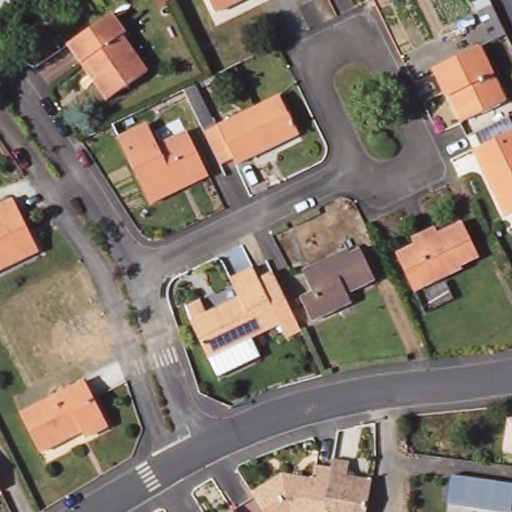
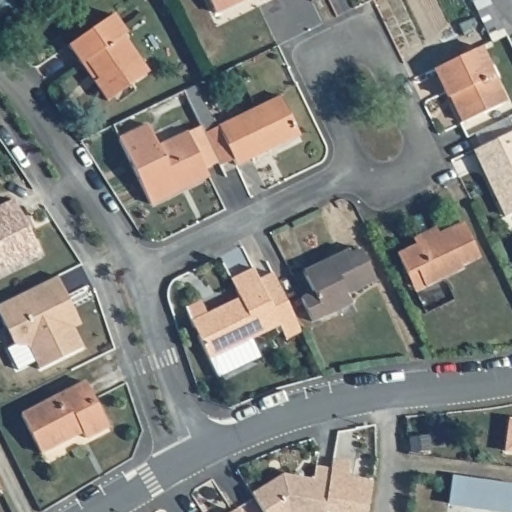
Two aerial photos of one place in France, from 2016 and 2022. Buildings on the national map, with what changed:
unchanged [(216,11),(210,0),(239,0),(216,11)]
unchanged [(486,33),(471,5),(481,0),(487,0),(501,27),(486,33)]
unchanged [(114,17),(128,35),(125,37),(151,75),(110,102),(71,46),(114,17)]
unchanged [(480,45),(506,99),(465,119),(452,95),(448,96),(435,67),(480,45)]
unchanged [(285,95),(303,132),(240,164),(236,157),(224,164),(207,132),(285,95)]
unchanged [(179,189),(151,203),(120,141),(144,127),(156,147),(186,133),(203,168),(207,175),(179,189)]
unchanged [(512,128),(512,210),(505,213),(495,194),(479,162),(472,147),(512,128)]
unchanged [(41,247),(0,269),(0,204),(13,197),(41,247)]
unchanged [(407,277),(396,255),(416,244),(413,238),(436,227),(439,233),(461,223),(480,257),(459,266),(461,270),(425,287),(415,293),(407,277)]
unchanged [(351,250),(360,245),(374,274),(348,288),(355,300),(313,320),(301,296),(313,289),(306,275),(302,269),(327,256),(348,245),(351,250)]
unchanged [(219,374),(213,360),(194,323),(241,300),(232,281),(254,270),(261,282),(272,275),(302,333),(287,340),(280,328),(253,341),(260,354),(219,374)]
new [(65,293),(79,321),(72,325),(82,344),(39,366),(27,344),(13,343),(0,318),(0,301),(55,273),(65,293)]
unchanged [(81,382),(105,425),(82,437),(79,432),(39,454),(20,417),(81,382)]
unchanged [(511,422),(512,423),(512,453),(508,452),(511,422)]
unchanged [(331,460),(347,463),(345,477),(371,482),(365,512),(322,512),(329,469),(331,460)]
unchanged [(280,474),(310,480),(313,466),(329,469),(322,512),(260,512),(249,494),(280,474)]
unchanged [(512,504),(511,512),(501,512),(446,503),(450,474),(512,484),(512,504)]
unchanged [(230,512),(229,512),(230,511),(230,512)]

